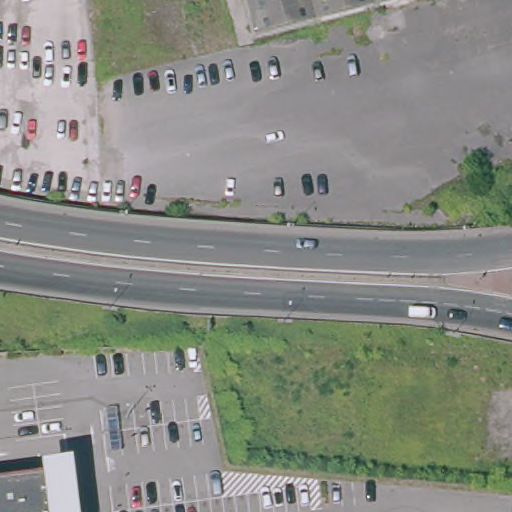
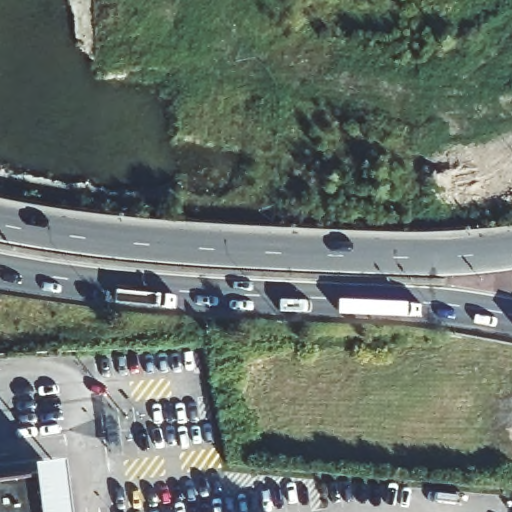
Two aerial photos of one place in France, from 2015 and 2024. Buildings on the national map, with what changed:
demolished [(243,0),(389,0),(383,1),(252,34),(243,0)]
unchanged [(35,468),(69,463),(75,512),(0,512),(0,481),(37,476),(35,468)]

